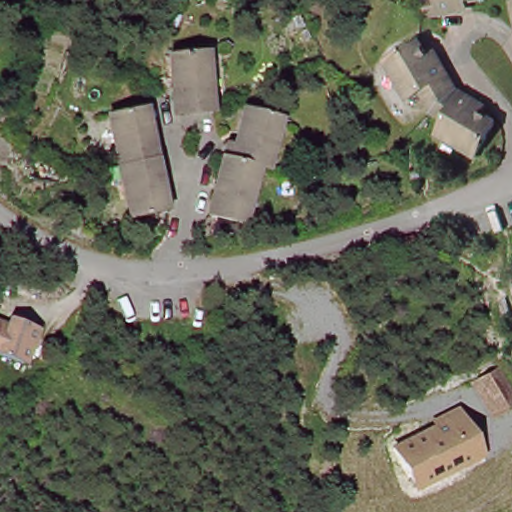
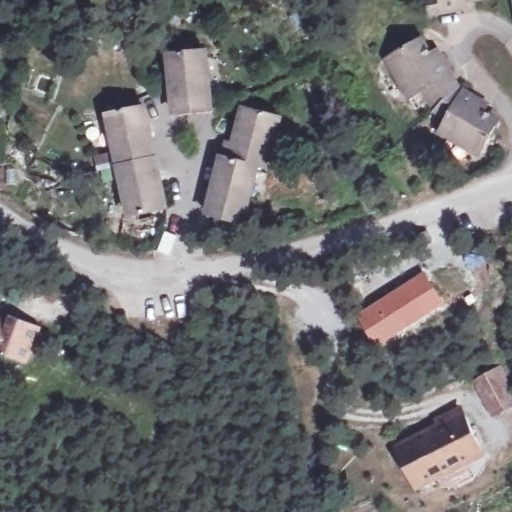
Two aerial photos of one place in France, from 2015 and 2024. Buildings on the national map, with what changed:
unchanged [(465,6),(431,10),(430,0),(464,0),(465,6)]
unchanged [(486,100),(482,108),(501,118),(483,151),(444,130),(449,120),(435,112),(420,92),(409,100),(383,62),(420,37),(435,57),(440,55),(460,85),(486,100)]
unchanged [(175,112),(172,52),(209,51),(213,110),(175,112)]
unchanged [(132,213),(108,108),(143,100),(168,204),(132,213)]
unchanged [(261,166),(244,225),(212,215),(232,145),(240,147),(250,110),(281,117),(266,167),(261,166)]
new [(378,345),(359,315),(423,274),(445,305),(378,345)]
unchanged [(16,326),(20,319),(47,330),(40,346),(35,345),(27,362),(0,352),(0,319),(16,326)]
unchanged [(505,367),(512,380),(512,410),(495,419),(476,382),(505,367)]
unchanged [(420,493),(396,445),(437,427),(435,421),(464,408),(488,458),(420,493)]

